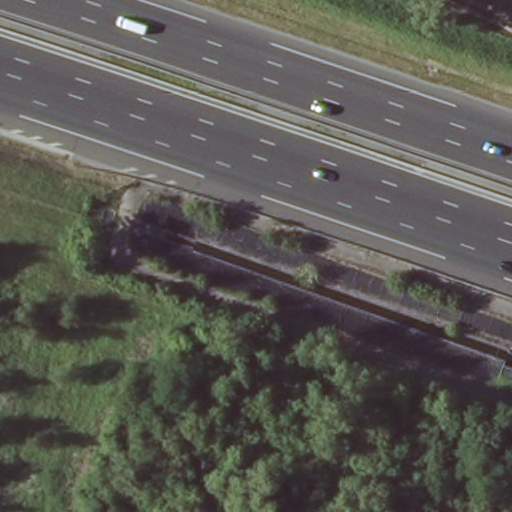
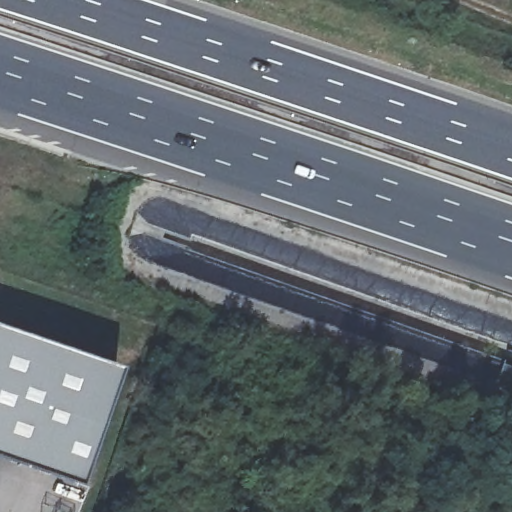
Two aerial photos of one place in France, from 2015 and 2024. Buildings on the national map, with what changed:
new [(0,457),(0,323),(127,367),(86,486),(0,457)]

